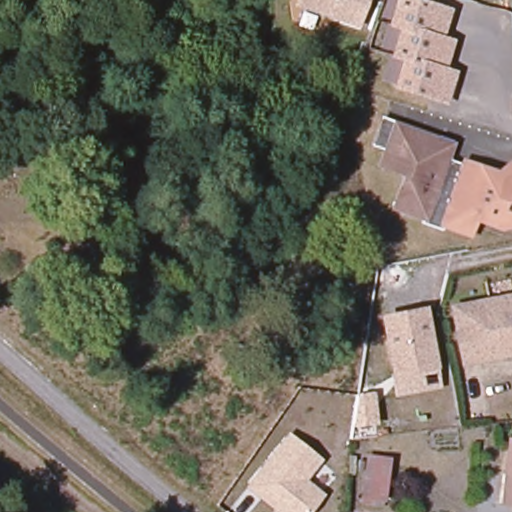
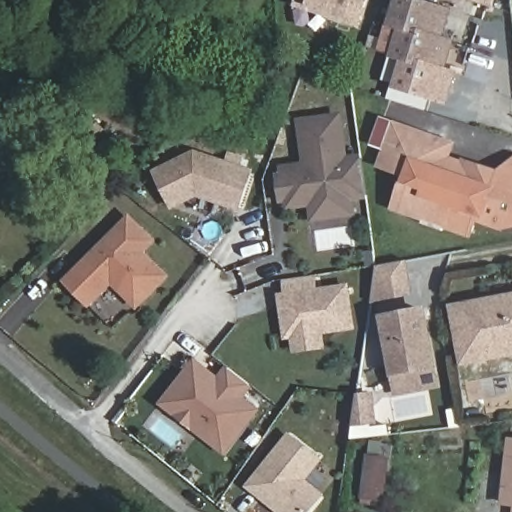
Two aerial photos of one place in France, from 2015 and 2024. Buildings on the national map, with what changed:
unchanged [(360,29),(291,6),(293,0),(370,0),(360,29)]
unchanged [(451,8),(444,36),(455,39),(447,67),(459,71),(448,105),(392,90),(400,61),(388,58),(398,29),(387,26),(394,0),(424,0),(451,8)]
demolished [(512,5),(490,6),(478,3),(478,0),(512,0),(512,5)]
new [(347,156),(361,154),(368,199),(354,201),(356,215),(310,222),(308,208),(285,211),(285,204),(280,205),(275,173),(280,173),(279,165),(302,162),(296,120),(341,113),(347,156)]
unchanged [(90,144),(75,124),(89,115),(103,135),(90,144)]
unchanged [(489,184),(493,185),(512,175),(512,233),(501,235),(500,230),(476,221),(470,240),(445,231),(442,237),(421,230),(423,224),(395,213),(406,180),(381,171),(387,154),(375,150),(383,127),(427,143),(451,151),(447,161),(446,165),(490,180),(489,184)]
new [(239,212),(197,198),(171,210),(152,170),(195,149),(254,170),(239,212)]
new [(144,252),(170,275),(137,310),(111,285),(89,308),(61,281),(129,213),(155,241),(144,252)]
new [(372,251),(374,264),(365,266),(363,252),(372,251)]
new [(371,303),(376,266),(407,261),(413,295),(371,303)]
new [(323,334),(325,349),(292,353),(290,338),(283,339),(277,294),(284,293),(282,281),(315,276),(317,288),(350,283),(356,330),(323,334)]
unchanged [(454,311),(475,308),(473,300),(512,294),(512,349),(463,359),(454,311)]
unchanged [(441,387),(395,398),(390,378),(376,314),(427,305),(439,368),(441,387)]
new [(225,456),(159,404),(194,358),(217,376),(226,366),(252,387),(244,396),(260,409),(225,456)]
unchanged [(307,479),(326,493),(311,512),(276,512),(245,486),(289,432),(323,460),(307,479)]
unchanged [(380,501),(358,498),(365,458),(386,461),(380,501)]
unchanged [(512,461),(512,500),(507,499),(512,461)]

